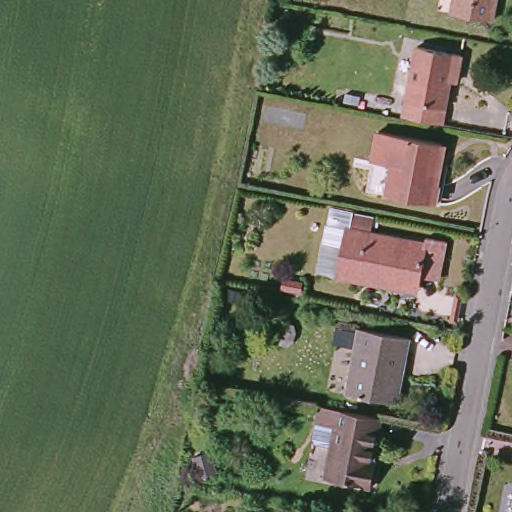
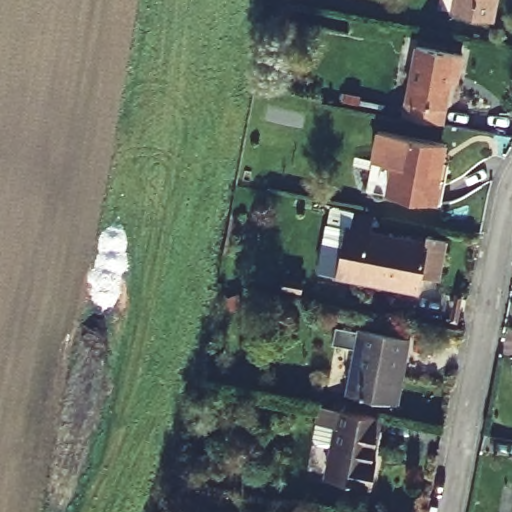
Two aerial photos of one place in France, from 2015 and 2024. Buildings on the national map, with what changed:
unchanged [(492,18),(452,11),(455,0),(496,0),(492,18)]
unchanged [(418,45),(462,53),(458,71),(456,81),(450,80),(442,123),(405,116),(418,45)]
unchanged [(439,137),(431,178),(436,179),(432,196),(383,187),(388,158),(369,154),(375,125),(439,137)]
unchanged [(360,278),(338,274),(317,270),(322,241),(343,245),(347,225),(425,240),(426,235),(445,239),(439,276),(420,272),(418,283),(417,289),(360,278)]
unchanged [(283,277),(304,281),(301,291),(281,287),(283,277)]
unchanged [(463,293),(458,321),(450,319),(455,292),(463,293)]
unchanged [(411,337),(399,400),(345,391),(357,327),(411,337)]
unchanged [(375,411),(366,454),(371,455),(366,481),(321,473),(332,421),(312,417),(315,400),(375,411)]
unchanged [(214,449),(220,470),(204,475),(197,454),(214,449)]

